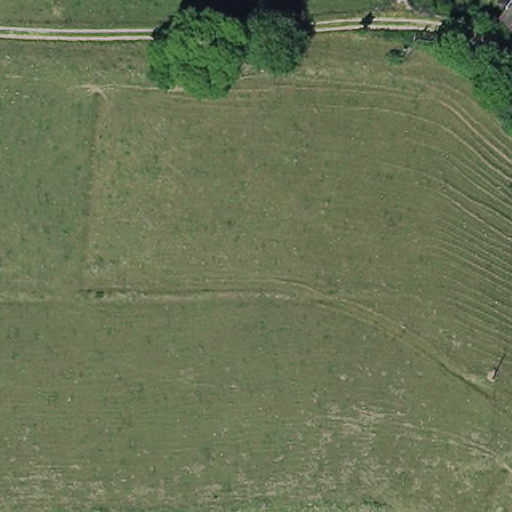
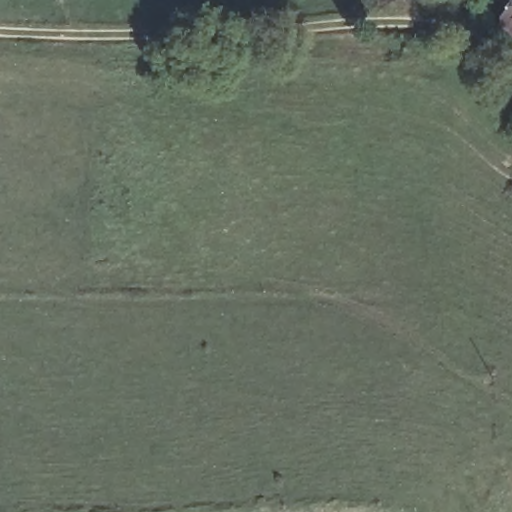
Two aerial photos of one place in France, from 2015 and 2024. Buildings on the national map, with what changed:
unchanged [(499,20),(509,9),(501,0),(512,0),(512,32),(499,20)]

